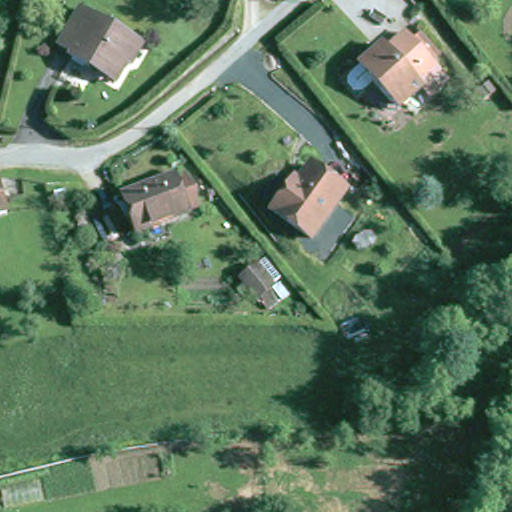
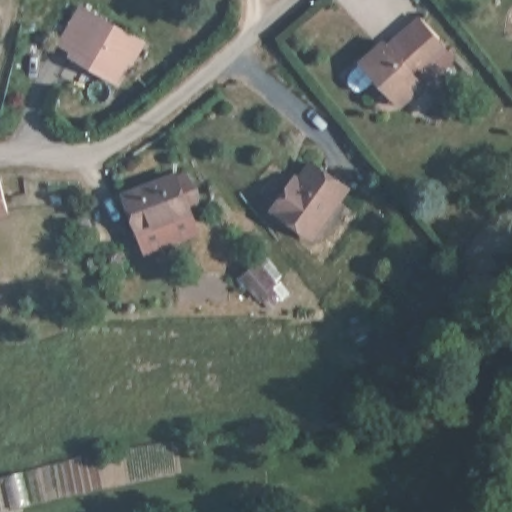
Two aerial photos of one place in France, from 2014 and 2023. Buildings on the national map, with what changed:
unchanged [(140,46),(120,81),(101,69),(92,71),(73,58),(75,54),(63,47),(85,11),(140,46)]
unchanged [(377,80),(369,88),(363,91),(357,91),(350,84),(350,78),(353,72),(362,64),(381,46),(385,42),(390,46),(408,29),(417,38),(422,32),(440,51),(434,57),(452,75),(433,92),(425,84),(415,95),(408,101),(402,106),(390,93),(377,80)]
unchanged [(312,238),(272,209),(287,189),(292,192),(313,163),(349,186),(312,238)]
unchanged [(138,226),(130,186),(186,173),(195,212),(138,226)]
unchanged [(13,175),(23,210),(0,217),(0,178),(13,175)]
unchanged [(2,269),(0,270),(0,261),(2,269)]

